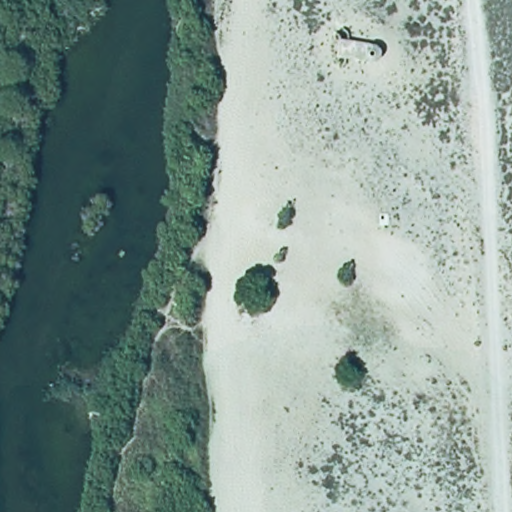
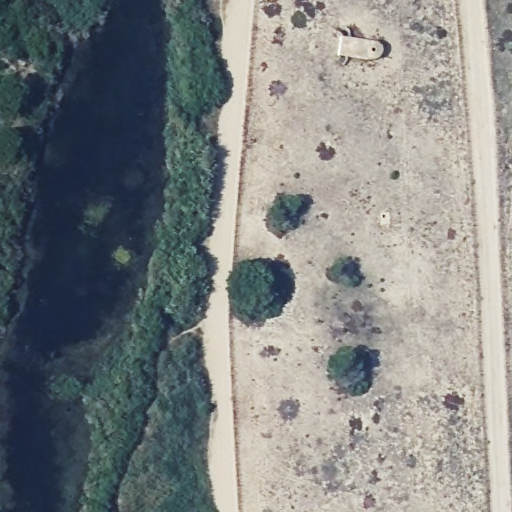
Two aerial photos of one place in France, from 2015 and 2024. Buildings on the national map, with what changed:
unchanged [(369,58),(335,55),(337,34),(367,38),(369,58)]

